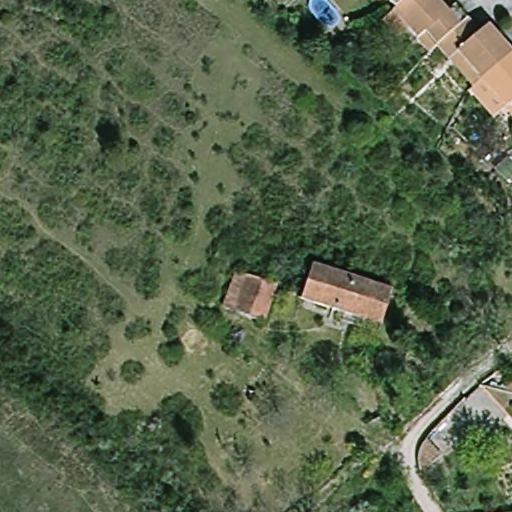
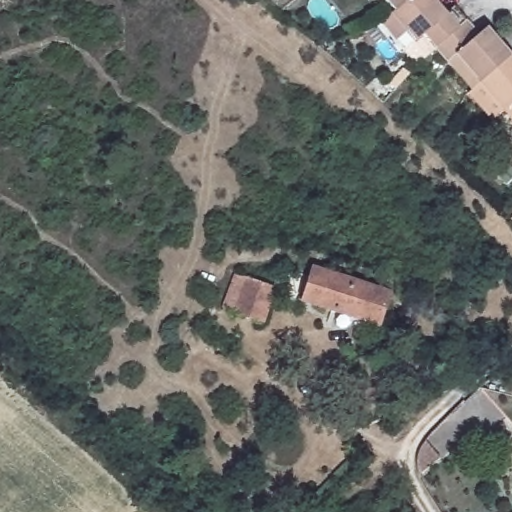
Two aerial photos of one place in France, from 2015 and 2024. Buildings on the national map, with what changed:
unchanged [(393,0),(407,0),(398,7),(393,0)]
unchanged [(458,4),(470,19),(440,45),(427,31),(420,38),(395,9),(398,7),(407,0),(441,0),(449,10),(458,4)]
unchanged [(491,25),(512,49),(512,57),(485,80),(461,54),(452,60),(440,45),(470,19),(482,33),(491,25)]
unchanged [(485,80),(512,57),(512,103),(507,106),(485,80)]
unchanged [(340,284),(383,302),(373,329),(300,301),(301,292),(280,284),(287,265),(340,284)]
unchanged [(235,312),(225,308),(241,269),(251,274),(278,286),(263,324),(235,312)]
unchanged [(507,369),(512,371),(512,388),(503,386),(507,369)]

